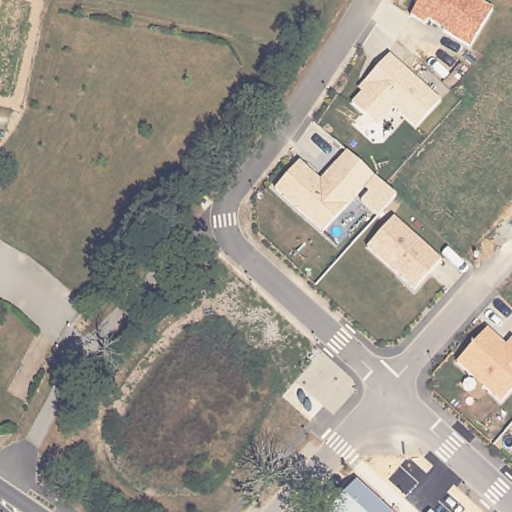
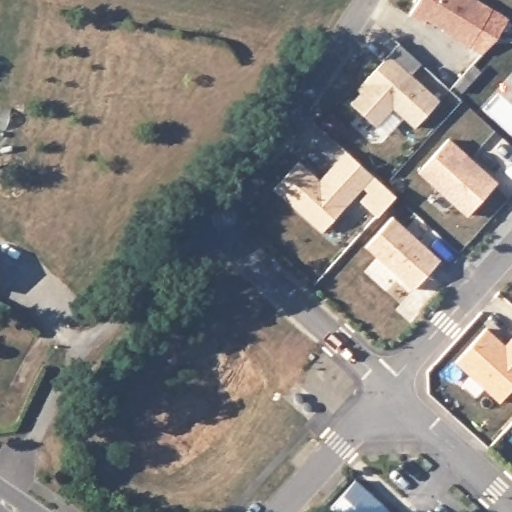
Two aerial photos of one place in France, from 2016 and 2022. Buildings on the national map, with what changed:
unchanged [(470,46),(427,20),(424,24),(410,15),(419,0),(480,0),(493,8),(470,46)]
unchanged [(416,130),(393,110),(377,128),(351,101),(359,93),(356,90),(388,54),(440,100),(416,130)]
new [(451,136),(500,182),(468,216),(419,172),(451,136)]
unchanged [(320,179),(346,151),(374,176),(396,196),(378,217),(361,201),(368,193),(364,190),(324,233),(275,189),(300,161),(320,179)]
unchanged [(414,290),(367,247),(392,217),(442,259),(414,290)]
unchanged [(512,338),(512,391),(502,403),(457,361),(487,328),(506,346),(512,338)]
unchanged [(393,512),(332,512),(329,509),(358,480),(393,512)]

